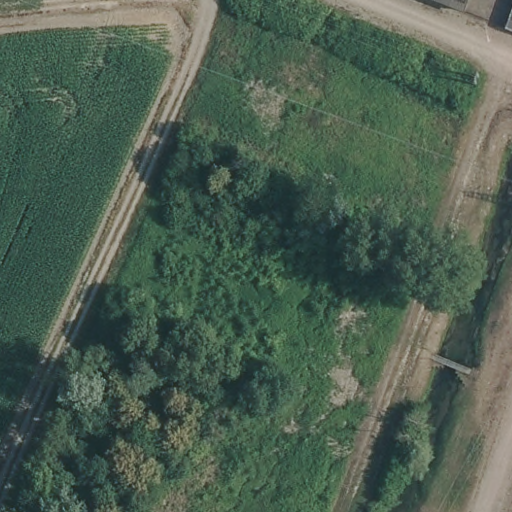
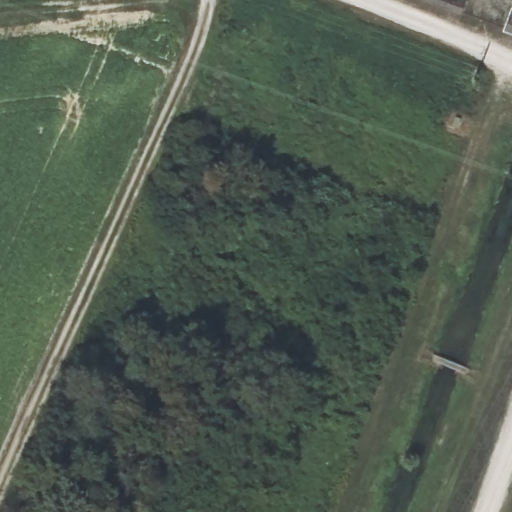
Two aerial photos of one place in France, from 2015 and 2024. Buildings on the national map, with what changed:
unchanged [(432,0),(465,0),(461,11),(432,0)]
unchanged [(512,27),(512,33),(510,32),(512,27)]

